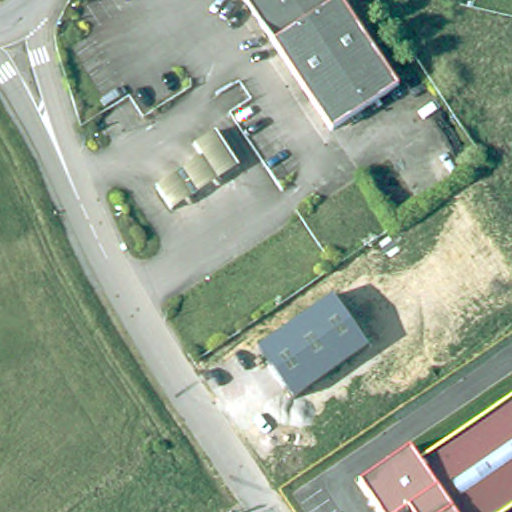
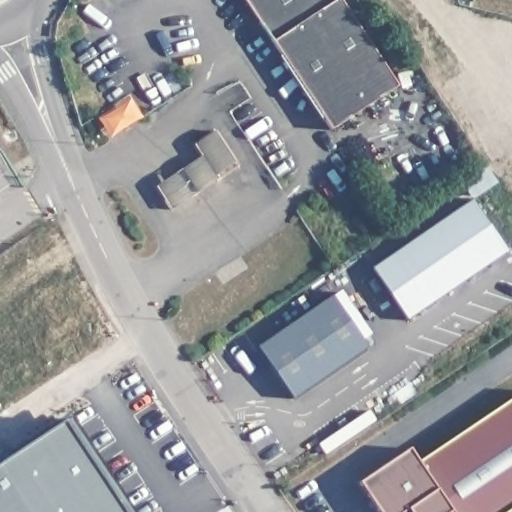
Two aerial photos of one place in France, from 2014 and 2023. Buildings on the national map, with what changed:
unchanged [(329,132),(246,0),(340,0),(396,88),(329,132)]
unchanged [(197,158),(190,146),(212,133),(234,167),(167,209),(152,186),(197,158)]
new [(472,201),(509,251),(407,319),(372,268),(472,201)]
unchanged [(369,346),(294,398),(258,347),(332,295),(369,346)]
unchanged [(409,510),(406,512),(380,512),(358,479),(409,446),(417,459),(512,396),(512,512),(410,512),(409,510)]
new [(125,512),(0,512),(0,465),(67,421),(125,512)]

